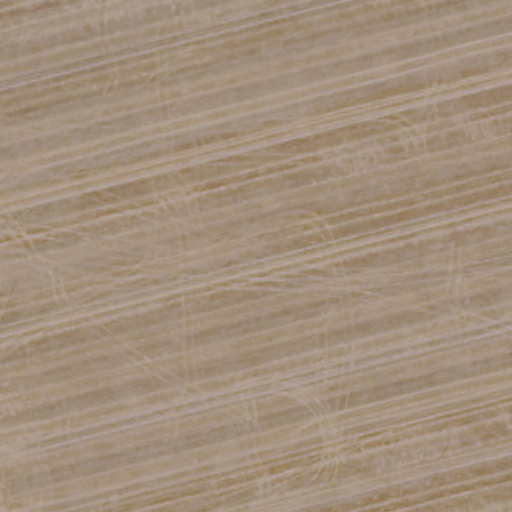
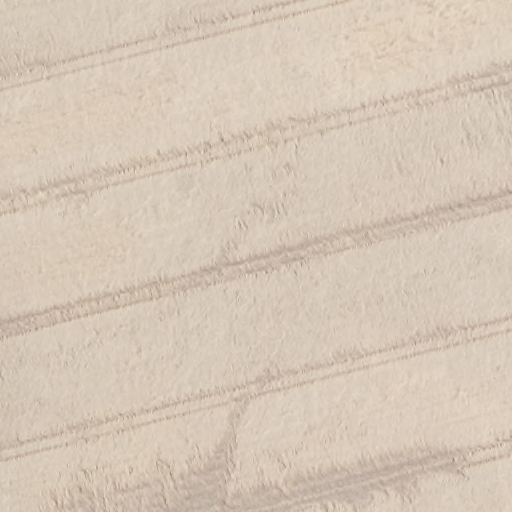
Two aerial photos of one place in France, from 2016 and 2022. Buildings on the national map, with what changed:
[]

